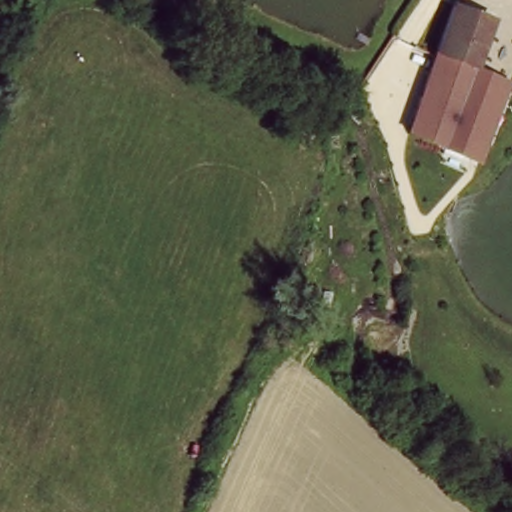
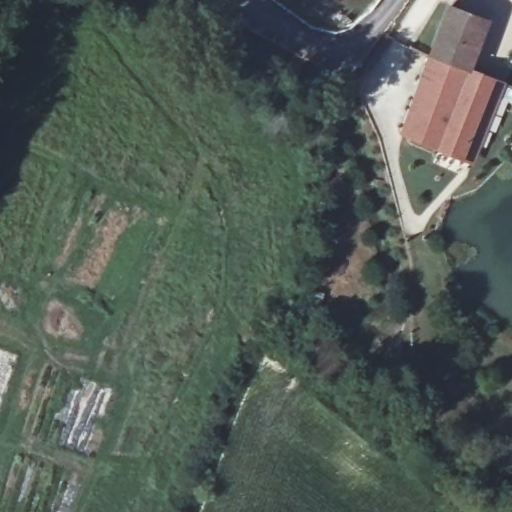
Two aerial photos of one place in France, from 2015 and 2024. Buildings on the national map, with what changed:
unchanged [(404,136),(434,55),(452,7),(490,21),(472,70),(440,154),(404,136)]
unchanged [(465,165),(440,154),(472,70),(500,79),(465,165)]

